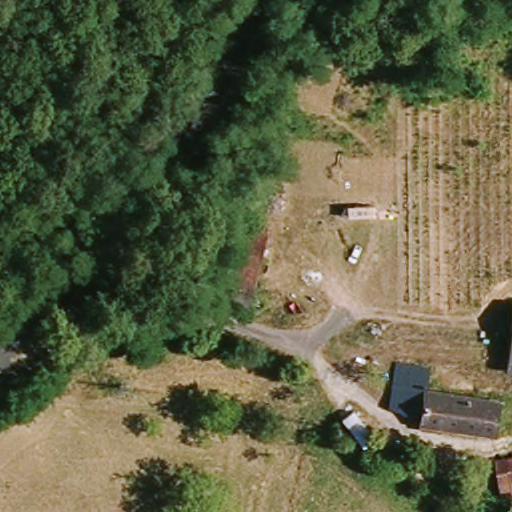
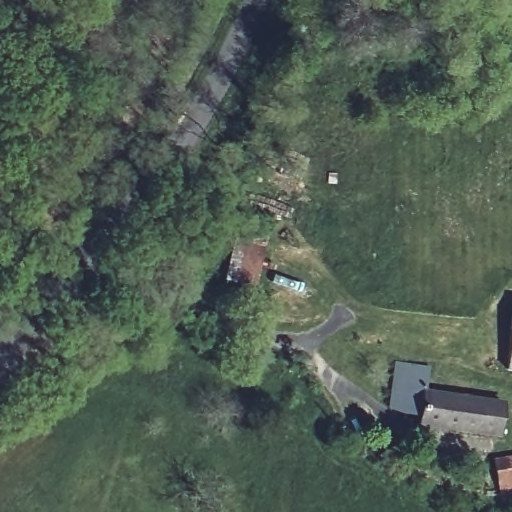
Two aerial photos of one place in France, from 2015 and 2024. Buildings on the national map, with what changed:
unchanged [(242,222),(272,228),(253,306),(224,298),(242,222)]
unchanged [(512,369),(510,368),(512,359),(512,369)]
unchanged [(427,414),(395,412),(397,386),(399,366),(400,361),(431,364),(429,391),(427,414)]
unchanged [(427,414),(429,391),(512,399),(512,430),(427,422),(427,414)]
unchanged [(512,493),(508,494),(502,458),(512,457),(512,493)]

